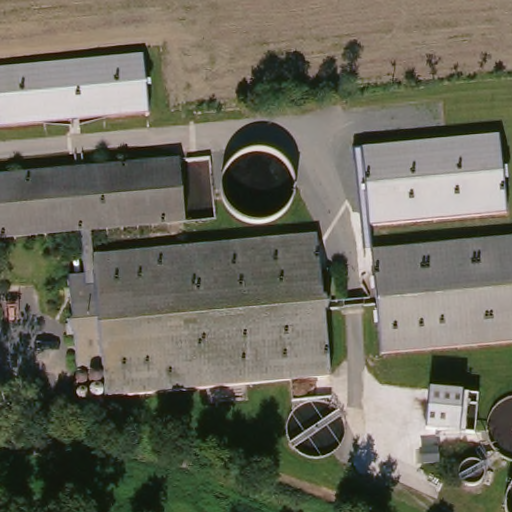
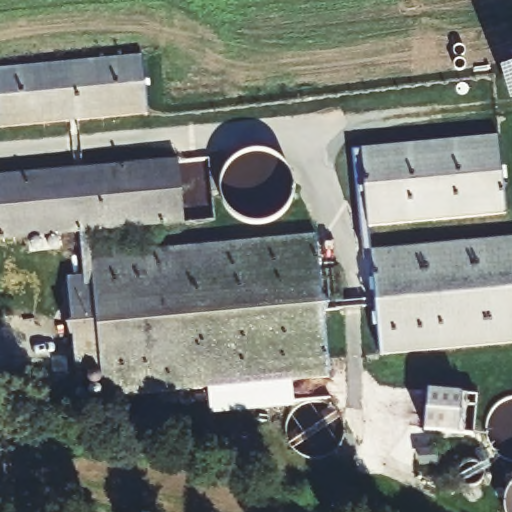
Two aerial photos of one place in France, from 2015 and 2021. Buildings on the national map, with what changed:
unchanged [(0,126),(0,68),(142,55),(147,114),(0,126)]
unchanged [(363,148),(498,135),(506,214),(370,226),(363,148)]
unchanged [(174,164),(178,225),(83,234),(86,258),(313,239),(324,383),(98,402),(96,372),(71,373),(63,283),(75,280),(72,235),(37,238),(38,176),(174,164)]
unchanged [(38,176),(37,238),(0,242),(0,179),(38,176)]
unchanged [(372,246),(512,235),(512,340),(380,350),(372,246)]

